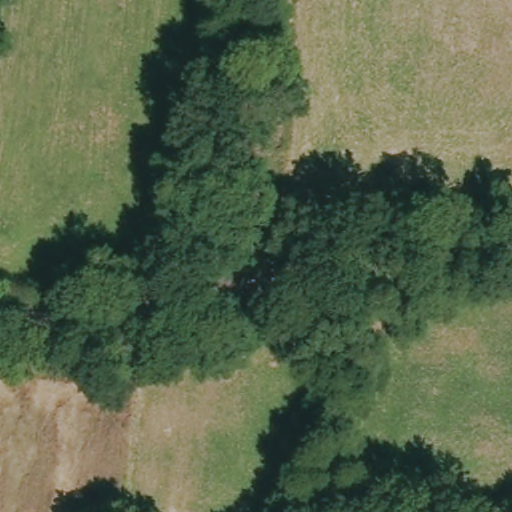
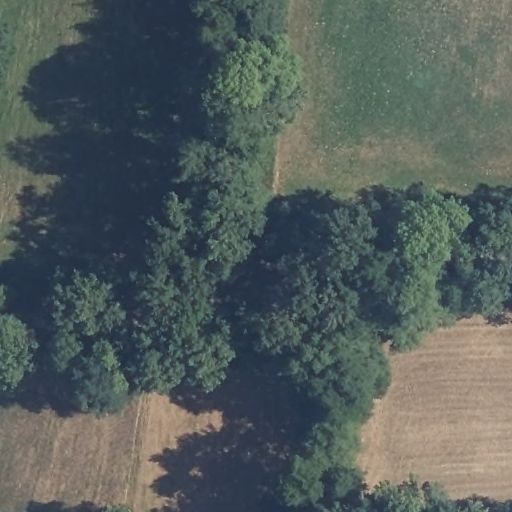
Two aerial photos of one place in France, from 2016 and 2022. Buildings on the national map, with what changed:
[]

